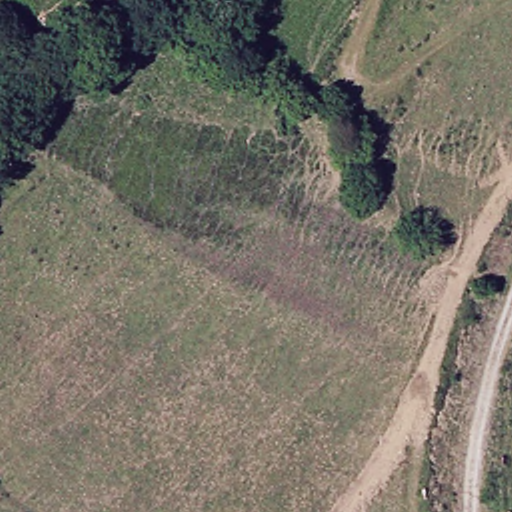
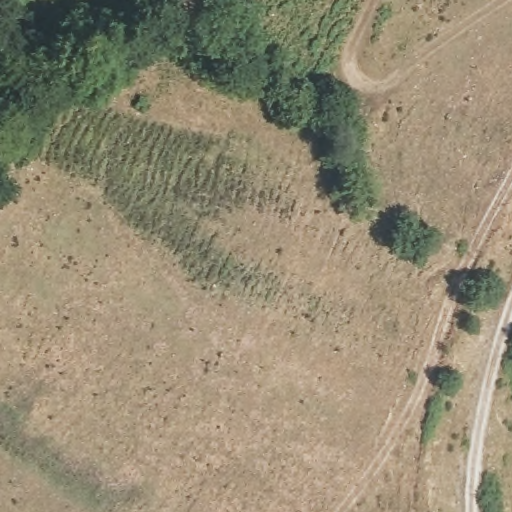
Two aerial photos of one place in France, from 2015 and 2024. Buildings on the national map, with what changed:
unchanged [(357,125),(353,152),(327,149),(328,123),(357,125)]

